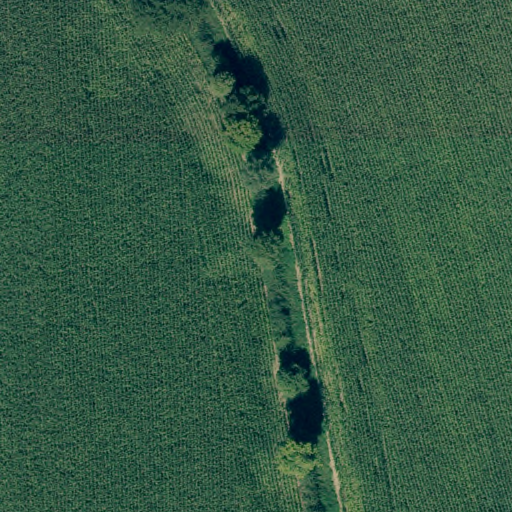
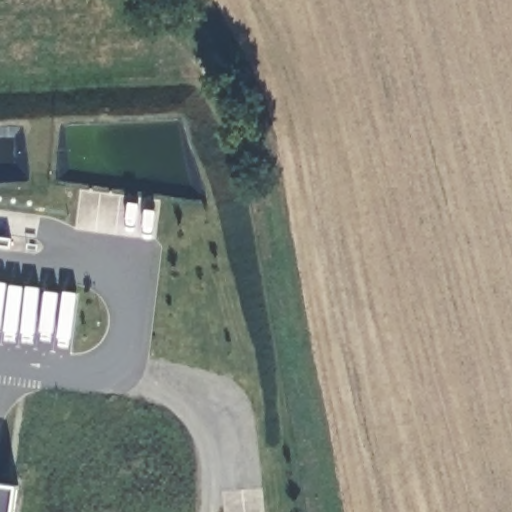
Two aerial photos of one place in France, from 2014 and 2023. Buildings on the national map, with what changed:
new [(0,512),(0,484),(18,486),(15,512),(0,512)]

